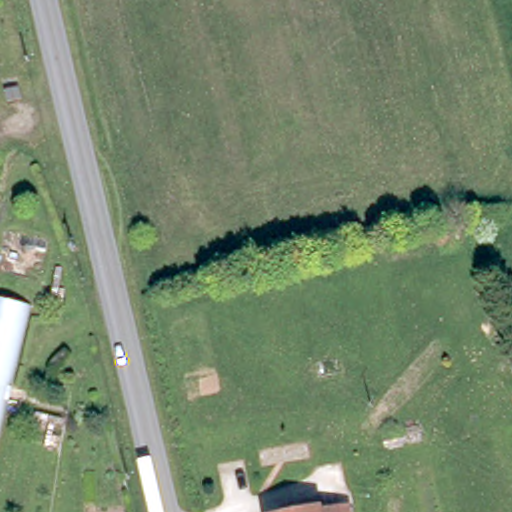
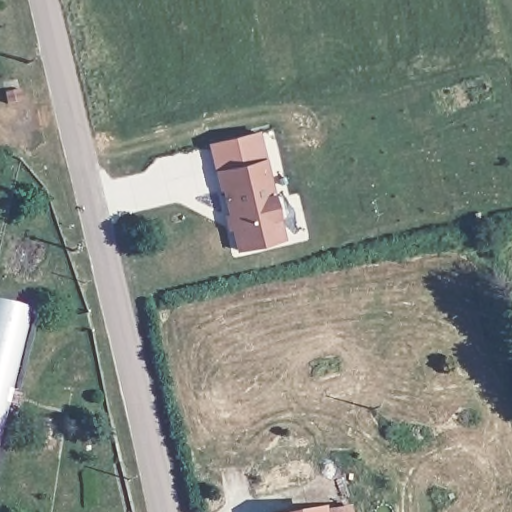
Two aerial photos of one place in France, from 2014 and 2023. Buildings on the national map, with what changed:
new [(214,170),(209,145),(261,134),(266,158),(214,170)]
new [(214,170),(266,158),(286,240),(236,250),(232,229),(228,230),(224,214),(227,213),(223,189),(219,190),(214,170)]
unchanged [(33,320),(0,456),(0,312),(33,320)]
demolished [(73,394),(65,461),(29,458),(40,391),(73,394)]
unchanged [(346,506),(348,512),(313,512),(346,506)]

